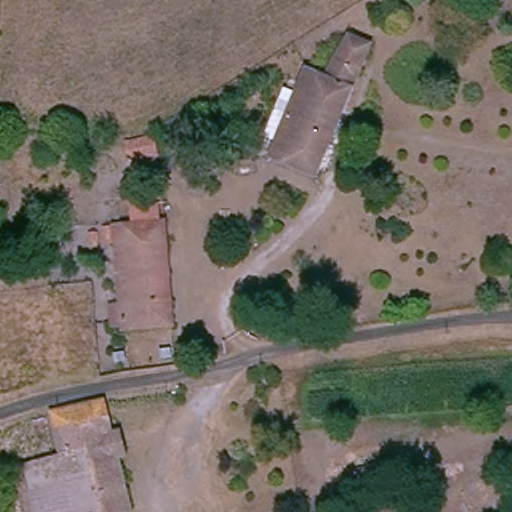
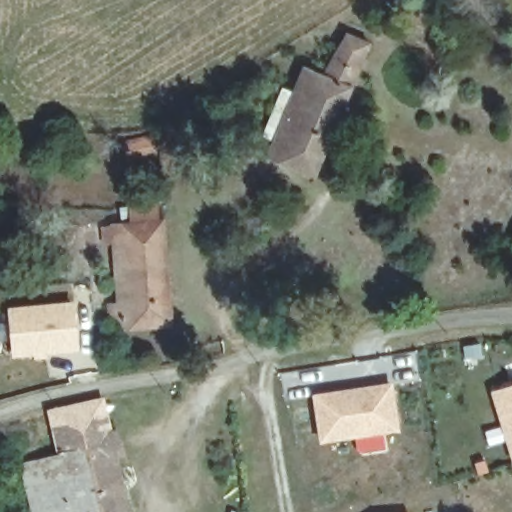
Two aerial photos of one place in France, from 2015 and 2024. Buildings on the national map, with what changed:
unchanged [(281,105),(291,110),(311,70),(328,79),(353,33),(374,45),(309,176),(269,156),(273,147),(263,142),(281,105)]
unchanged [(139,159),(143,157),(147,164),(148,175),(134,177),(131,162),(139,159)]
unchanged [(162,219),(175,317),(127,323),(114,325),(113,308),(125,307),(114,226),(162,219)]
new [(76,300),(81,351),(11,357),(7,307),(76,300)]
new [(399,432),(320,445),(312,396),(392,383),(399,432)]
new [(512,386),(512,460),(491,392),(512,386)]
unchanged [(60,455),(53,410),(104,402),(109,435),(120,432),(123,455),(107,457),(116,512),(31,512),(21,462),(60,455)]

